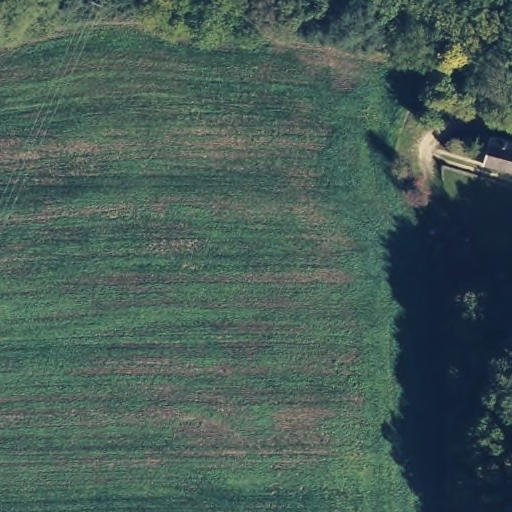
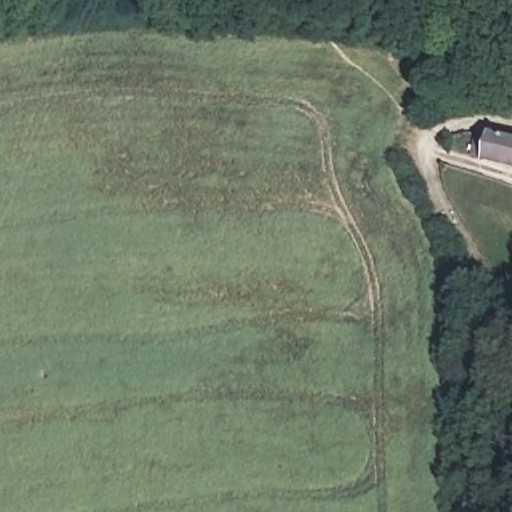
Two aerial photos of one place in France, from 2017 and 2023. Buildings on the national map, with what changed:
unchanged [(489,155),(489,152),(480,150),(485,128),(494,130),(495,128),(512,132),(512,161),(489,155)]

